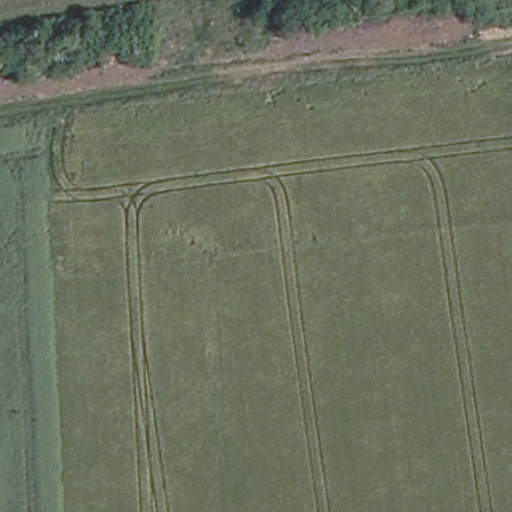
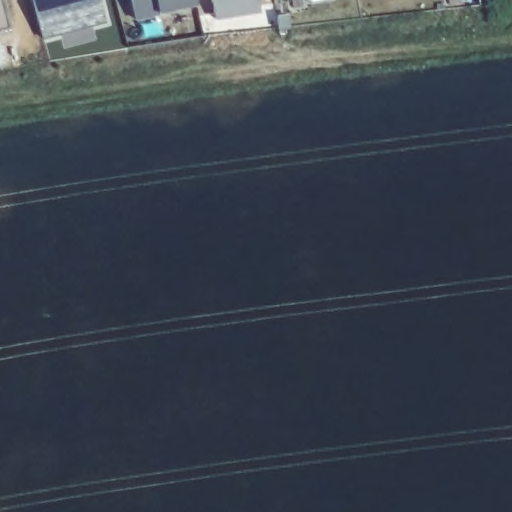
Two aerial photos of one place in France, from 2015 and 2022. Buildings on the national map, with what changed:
new [(12,29),(0,31),(0,0),(4,0),(12,29)]
new [(33,0),(100,0),(107,22),(43,39),(33,0)]
new [(132,0),(195,0),(197,7),(161,15),(136,19),(132,0)]
new [(212,0),(259,0),(262,12),(217,21),(212,0)]
new [(312,1),(311,0),(321,0),(312,1)]

